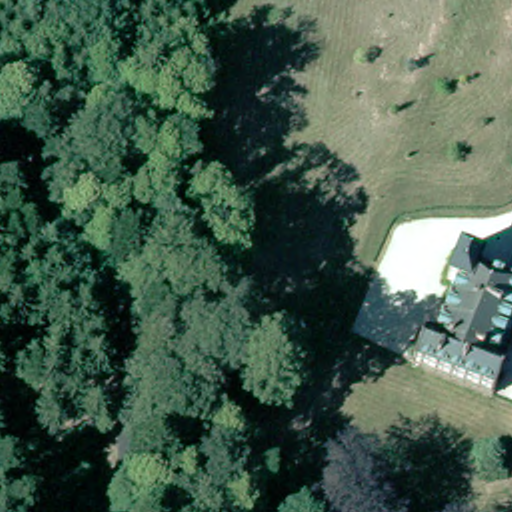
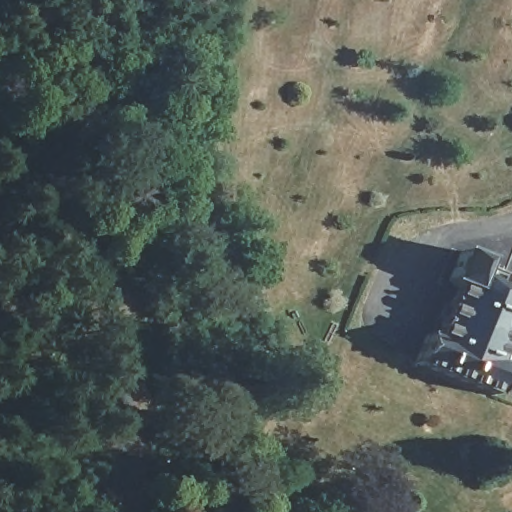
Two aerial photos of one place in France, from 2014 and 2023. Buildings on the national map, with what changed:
unchanged [(503,364),(488,397),(410,364),(421,339),(429,343),(451,290),(442,286),(458,250),(480,259),(475,269),(512,285),(512,320),(495,360),(503,364)]

